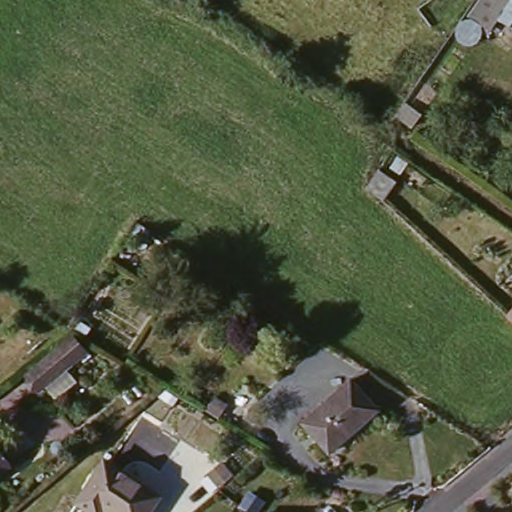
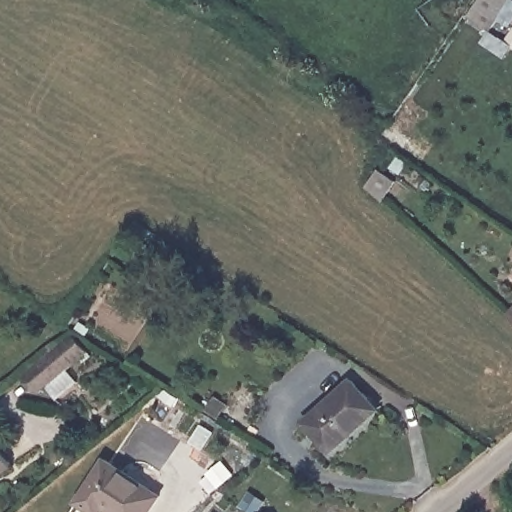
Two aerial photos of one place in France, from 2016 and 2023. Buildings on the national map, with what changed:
unchanged [(459,16),(471,0),(500,0),(479,31),(459,16)]
unchanged [(388,185),(376,203),(358,186),(369,170),(388,185)]
unchanged [(512,305),(512,322),(504,316),(512,305)]
unchanged [(86,351),(37,387),(23,370),(73,333),(86,351)]
unchanged [(374,409),(322,445),(301,417),(353,380),(374,409)]
unchanged [(8,464),(0,470),(0,453),(8,464)]
unchanged [(81,501),(105,461),(159,494),(148,512),(128,512),(116,505),(112,512),(100,512),(81,501)]

